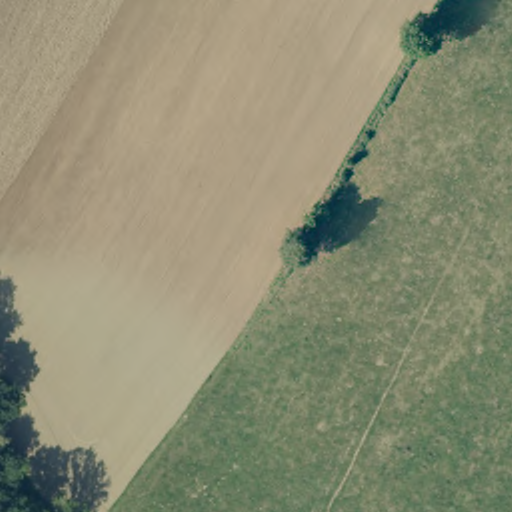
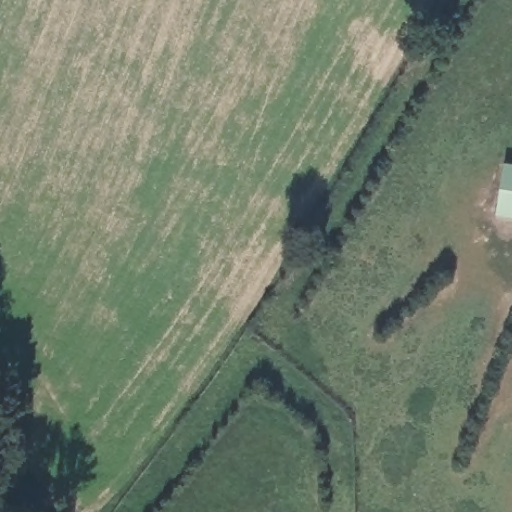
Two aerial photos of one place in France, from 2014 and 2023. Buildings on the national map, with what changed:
new [(505,164),(512,165),(512,220),(496,217),(505,164)]

